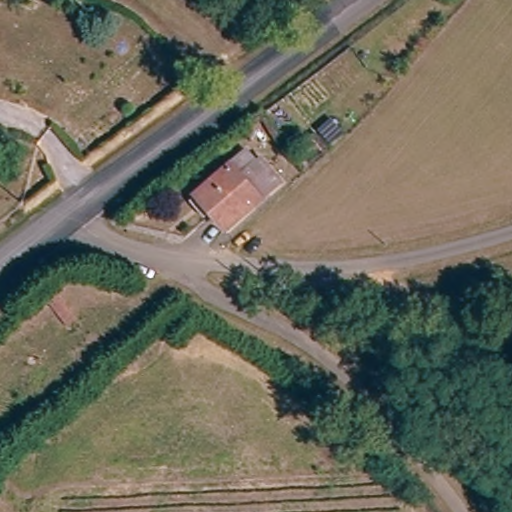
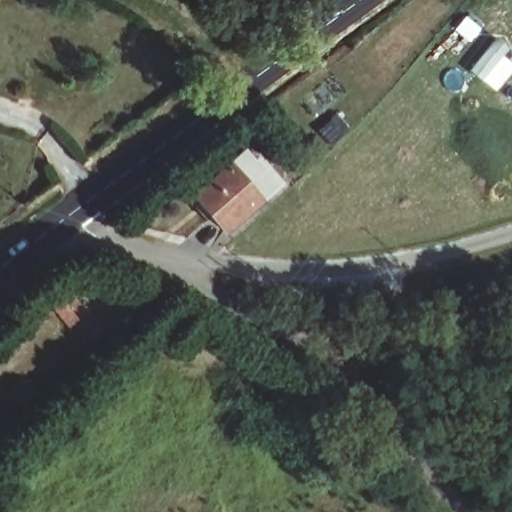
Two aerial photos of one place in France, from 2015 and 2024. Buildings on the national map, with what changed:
new [(495,44),(512,61),(512,71),(495,92),(468,70),(495,44)]
unchanged [(228,230),(200,196),(249,155),(257,166),(264,161),(283,185),(228,230)]

